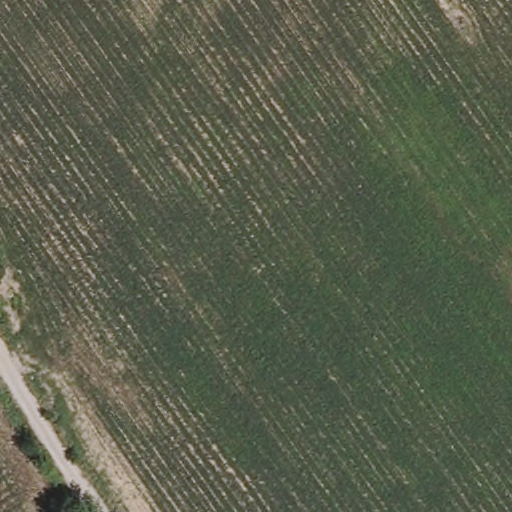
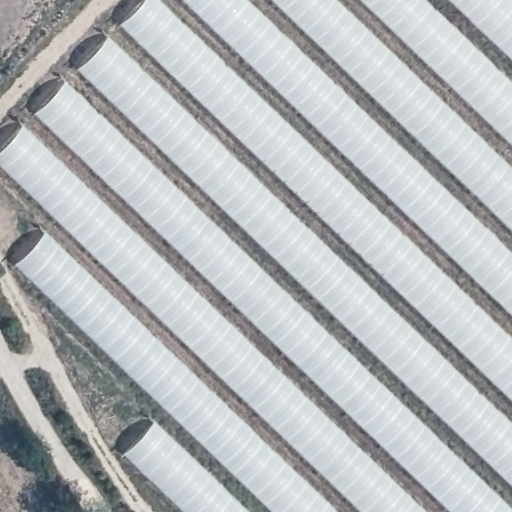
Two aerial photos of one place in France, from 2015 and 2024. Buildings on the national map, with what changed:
new [(161,411),(4,262),(47,216),(0,173),(0,146),(139,0),(512,0),(512,512),(177,512),(118,456),(161,411)]

